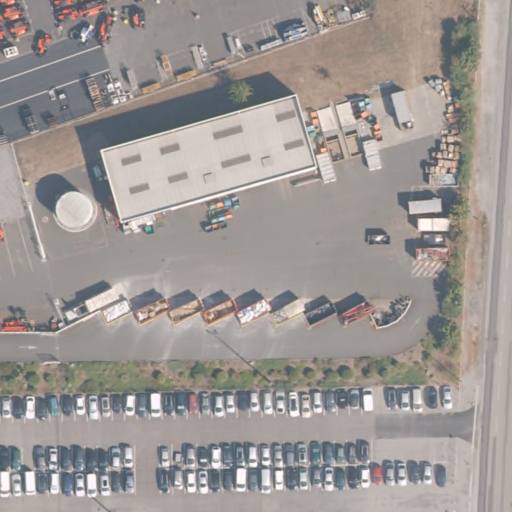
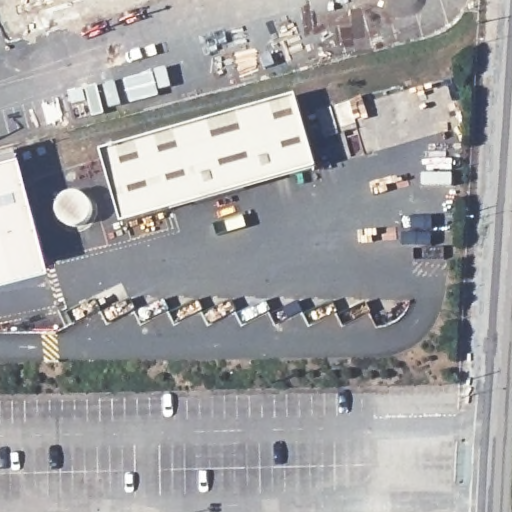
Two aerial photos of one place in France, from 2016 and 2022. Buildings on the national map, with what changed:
unchanged [(300,94),(324,167),(123,223),(98,149),(300,94)]
new [(0,151),(12,147),(40,263),(0,274),(0,151)]

